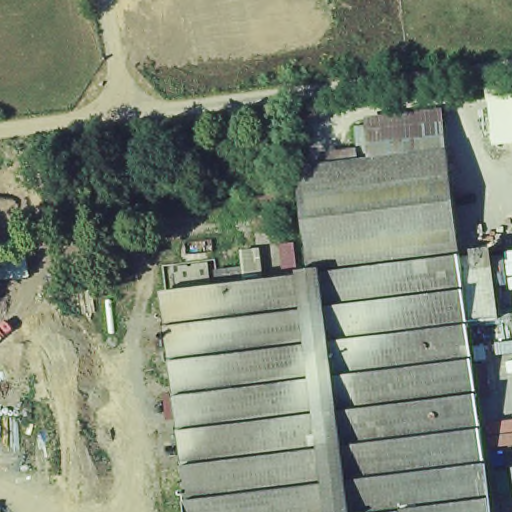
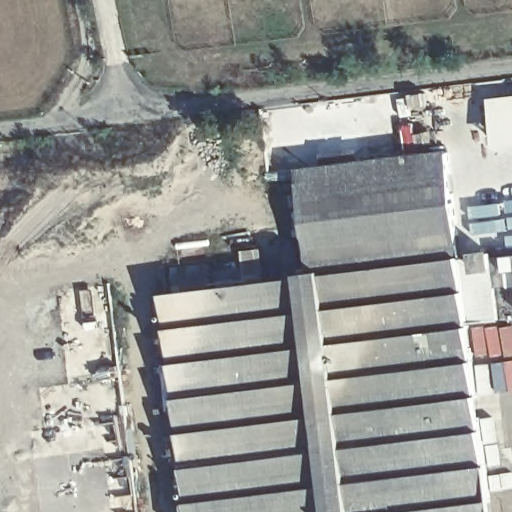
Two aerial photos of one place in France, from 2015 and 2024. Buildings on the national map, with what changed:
unchanged [(512,97),(512,138),(496,140),(491,99),(512,97)]
unchanged [(443,114),(448,154),(365,164),(361,122),(443,114)]
unchanged [(331,272),(331,270),(323,271),(315,272),(303,172),(365,164),(448,154),(461,257),(331,272)]
unchanged [(462,262),(474,260),(473,256),(489,254),(497,319),(469,322),(462,262)]
unchanged [(469,322),(473,349),(493,512),(362,512),(331,272),(461,257),(462,262),(469,322)]
unchanged [(302,273),(315,272),(323,271),(323,273),(331,272),(362,512),(191,512),(164,293),(220,286),(218,271),(245,267),(248,283),(303,277),(302,273)]

